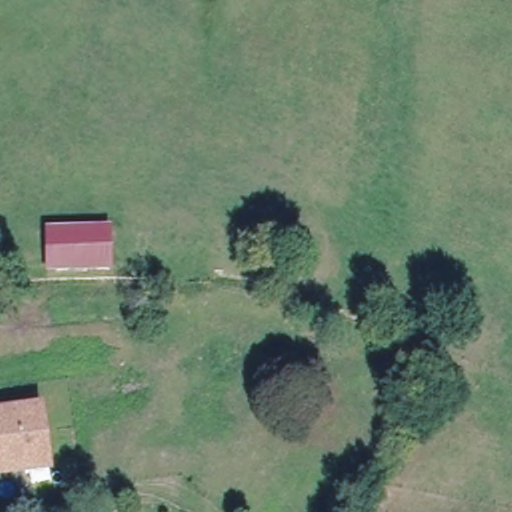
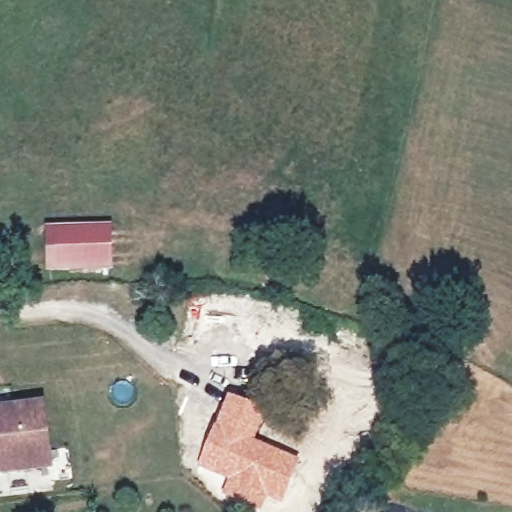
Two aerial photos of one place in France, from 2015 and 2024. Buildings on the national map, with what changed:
unchanged [(123,225),(118,269),(49,261),(52,221),(123,225)]
new [(229,396),(269,414),(256,441),(302,461),(283,503),(267,496),(259,511),(222,492),(228,479),(198,465),(229,396)]
unchanged [(56,465),(6,471),(0,417),(0,413),(49,407),(56,465)]

